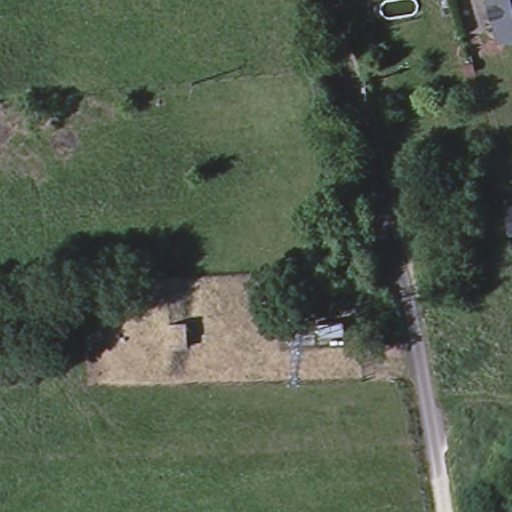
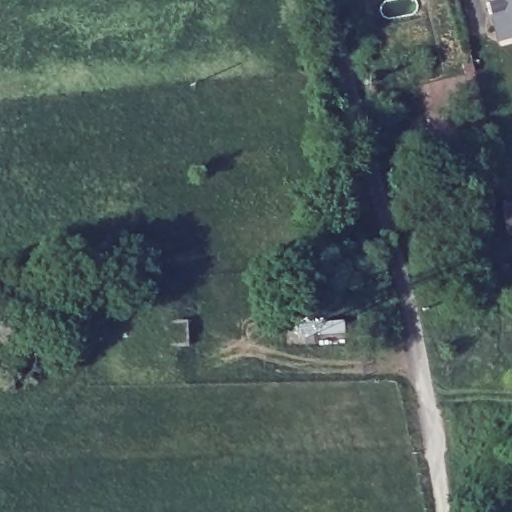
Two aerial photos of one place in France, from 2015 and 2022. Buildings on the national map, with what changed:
unchanged [(488,14),(484,15),(481,4),(484,3),(484,0),(512,0),(512,34),(494,39),(488,14)]

